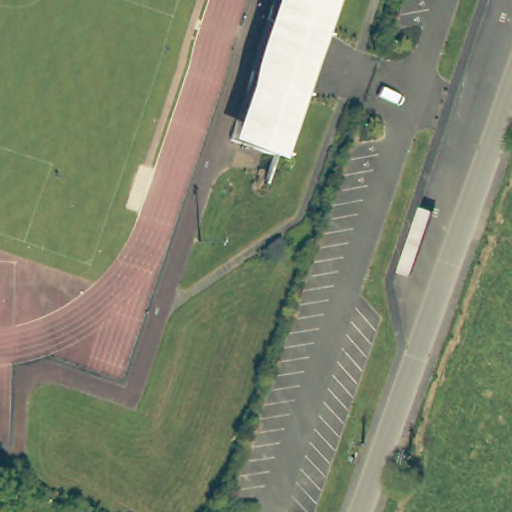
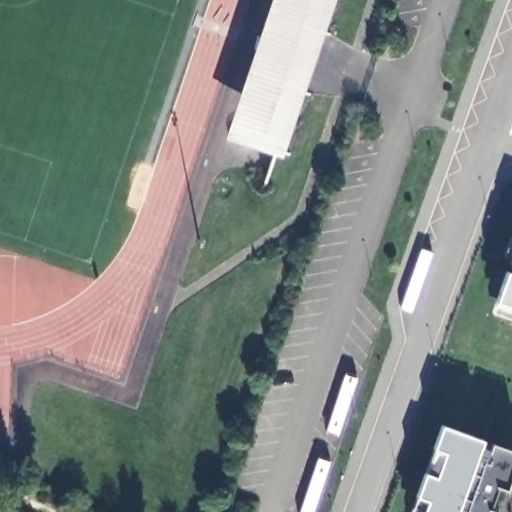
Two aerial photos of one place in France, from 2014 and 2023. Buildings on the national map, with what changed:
unchanged [(330,0),(280,146),(278,154),(231,139),(234,130),(278,0),(330,0)]
new [(498,264),(509,267),(512,260),(512,319),(484,310),(498,264)]
new [(496,486),(487,509),(497,512),(412,512),(417,498),(425,474),(442,426),(483,441),(480,449),(489,452),(492,444),(512,452),(512,473),(507,489),(496,486)]

